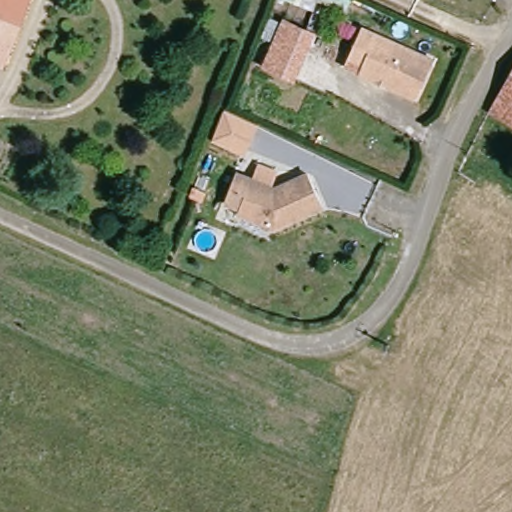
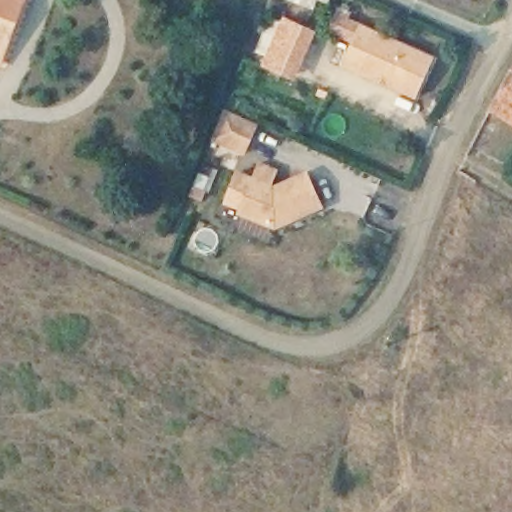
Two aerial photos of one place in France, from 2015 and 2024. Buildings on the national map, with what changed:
unchanged [(4,50),(0,59),(0,0),(23,0),(4,50)]
unchanged [(317,32),(295,82),(262,66),(282,16),(317,32)]
unchanged [(367,75),(372,67),(357,60),(342,54),(356,24),(370,31),(442,64),(426,101),(367,75)]
unchanged [(488,109),(512,69),(512,123),(488,109)]
unchanged [(223,109),(247,120),(235,147),(212,137),(223,109)]
unchanged [(326,211),(278,231),(244,217),(245,212),(231,207),(242,176),(276,190),(280,191),(290,186),(311,177),(326,211)]

